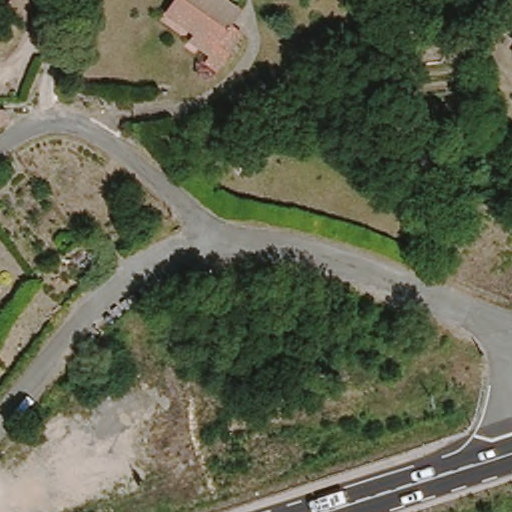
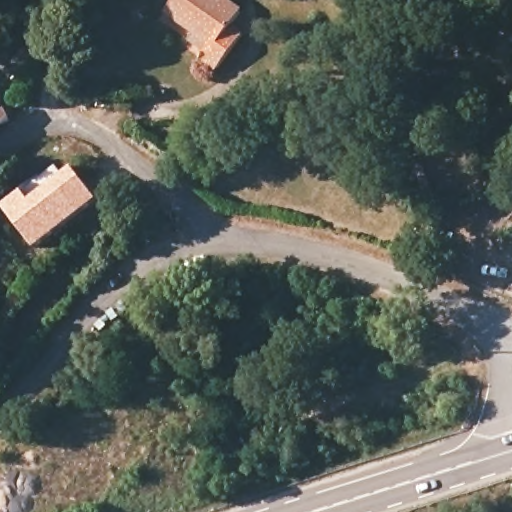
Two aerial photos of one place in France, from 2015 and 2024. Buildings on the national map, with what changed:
unchanged [(164,4),(166,0),(233,0),(235,1),(226,14),(241,23),(218,59),(203,49),(207,44),(185,29),(190,21),(164,4)]
unchanged [(512,43),(512,44),(511,44),(512,43)]
new [(22,189),(29,196),(35,191),(61,172),(70,165),(97,199),(33,249),(0,206),(22,189)]

